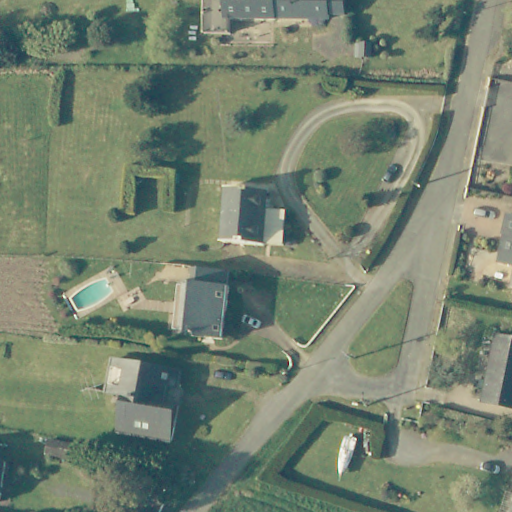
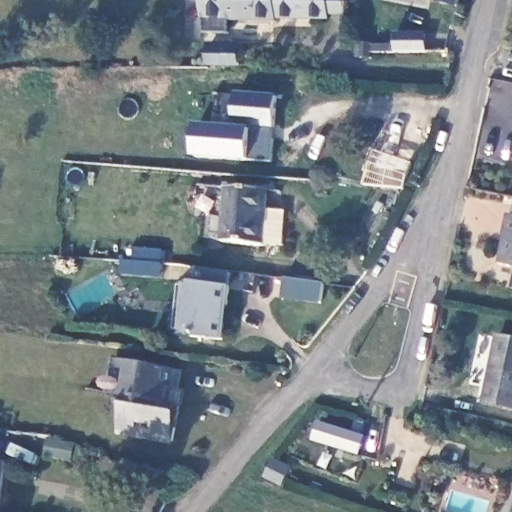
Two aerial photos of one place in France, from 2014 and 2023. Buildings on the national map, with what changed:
unchanged [(334,20),(281,20),(281,21),(230,20),(229,32),(206,31),(207,0),(334,0),(334,20)]
new [(459,7),(437,4),(438,0),(460,0),(459,7)]
new [(275,129),(265,128),(264,140),(273,140),(271,161),(249,159),(249,162),(194,158),(197,124),(232,126),(236,92),(275,95),(275,129)]
unchanged [(274,244),(255,244),(217,240),(220,186),(259,190),(258,209),(276,210),(274,244)]
unchanged [(505,266),(511,237),(508,237),(512,219),(512,267),(505,266)]
unchanged [(230,281),(223,350),(186,345),(192,278),(230,281)]
unchanged [(512,338),(512,408),(483,402),(496,335),(512,338)]
unchanged [(120,400),(105,397),(111,363),(177,373),(174,390),(164,389),(161,407),(177,410),(171,445),(123,437),(115,436),(120,400)]
unchanged [(80,442),(78,457),(54,453),(56,438),(80,442)]

